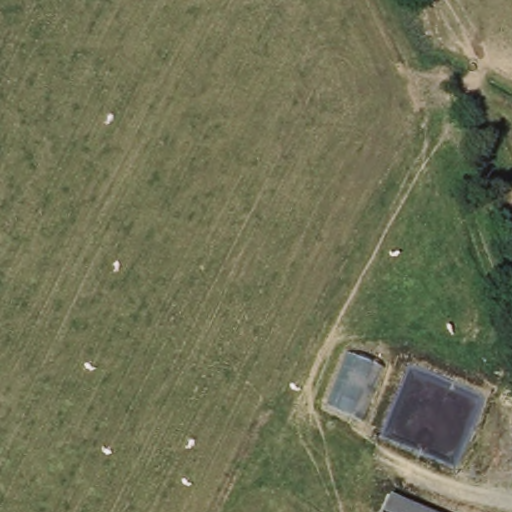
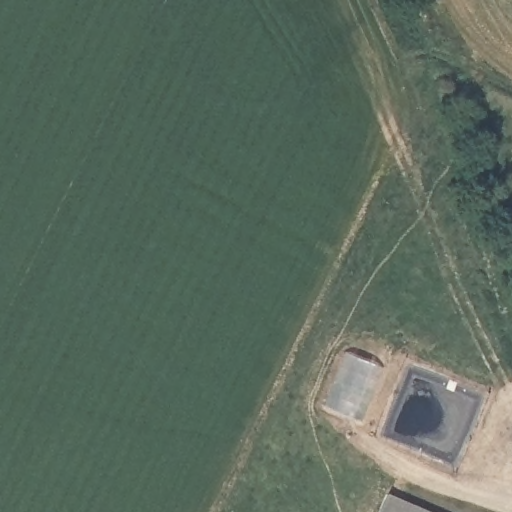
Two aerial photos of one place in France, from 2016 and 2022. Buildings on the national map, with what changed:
unchanged [(394,496),(433,512),(387,512),(394,496)]

